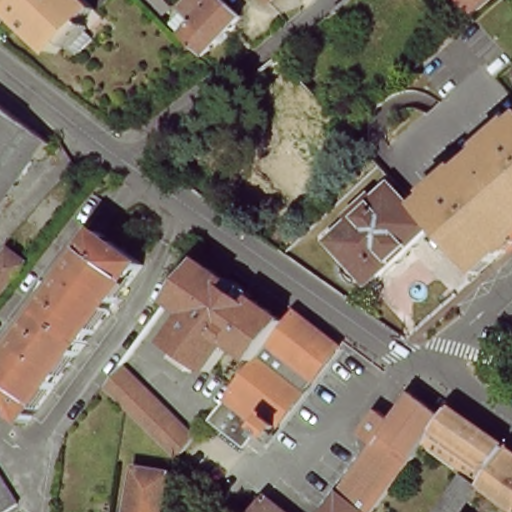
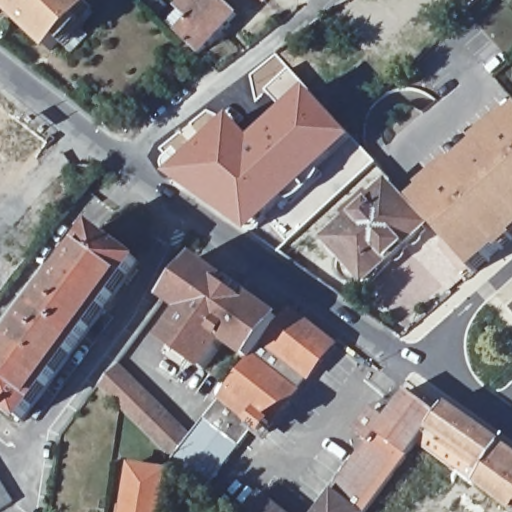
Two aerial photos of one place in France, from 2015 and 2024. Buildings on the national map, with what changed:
unchanged [(63,37),(53,48),(12,9),(3,0),(100,0),(95,5),(92,1),(80,13),(83,17),(80,22),(91,32),(75,49),(63,37)]
unchanged [(157,15),(143,0),(158,0),(165,7),(157,15)]
unchanged [(226,0),(242,16),(204,55),(183,35),(171,23),(185,9),(194,0),(226,0)]
unchanged [(265,0),(276,0),(270,6),(265,0)]
unchanged [(490,0),(474,14),(462,0),(490,0)]
new [(251,137),(282,112),(265,94),(254,100),(246,73),(275,51),(290,68),(310,90),(356,141),(343,152),(309,185),(314,190),(302,200),(248,237),(234,230),(172,183),(165,176),(162,172),(169,162),(155,147),(187,121),(205,107),(230,117),(232,119),(233,117),(251,137)]
demolished [(329,107),(302,121),(278,93),(270,98),(265,91),(271,86),(258,72),(281,54),(329,107)]
unchanged [(512,70),(512,84),(505,76),(512,70)]
unchanged [(42,139),(0,199),(0,105),(42,139)]
unchanged [(512,247),(481,274),(435,222),(422,207),(512,129),(512,247)]
new [(348,158),(343,152),(356,141),(375,164),(328,204),(323,199),(326,197),(320,187),(348,158)]
demolished [(194,175),(211,191),(220,197),(214,207),(184,186),(194,175)]
unchanged [(367,285),(364,286),(357,286),(354,283),(343,271),(349,257),(333,241),(393,185),(430,226),(394,260),(370,281),(367,285)]
unchanged [(0,401),(0,370),(5,362),(1,359),(15,341),(19,344),(63,283),(60,280),(72,262),(77,266),(102,232),(145,263),(29,422),(0,401)]
unchanged [(0,294),(0,256),(5,249),(24,263),(0,294)]
unchanged [(230,342),(210,371),(169,342),(190,313),(169,299),(200,260),(230,281),(256,299),(287,321),(256,361),(230,342)]
unchanged [(341,345),(270,436),(260,427),(245,447),(209,420),(256,361),(287,321),(296,310),(341,345)]
unchanged [(194,437),(181,455),(177,460),(176,458),(127,410),(120,403),(103,387),(120,365),(194,437)]
unchanged [(375,438),(362,428),(379,405),(392,414),(413,387),(445,410),(440,417),(423,440),(409,458),(381,496),(369,512),(320,512),(375,438)]
unchanged [(507,442),(480,481),(463,469),(433,447),(423,440),(440,417),(445,410),(451,402),(507,442)]
unchanged [(480,481),(507,442),(512,445),(512,505),(496,493),(480,481)]
unchanged [(127,508),(126,508),(133,467),(169,473),(166,493),(163,512),(126,512),(127,508)]
unchanged [(0,510),(0,481),(13,502),(0,510)]
unchanged [(265,490),(290,510),(293,512),(248,512),(265,490)]

